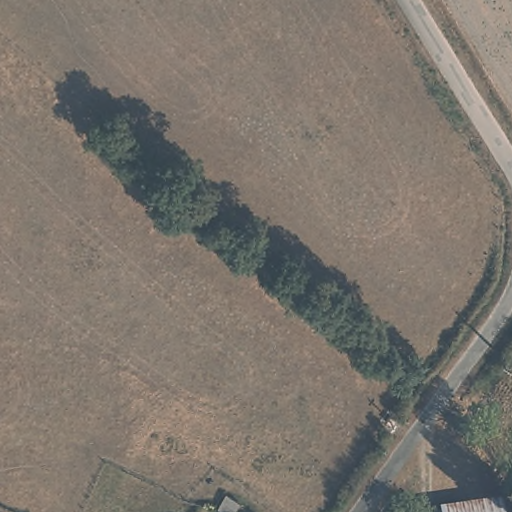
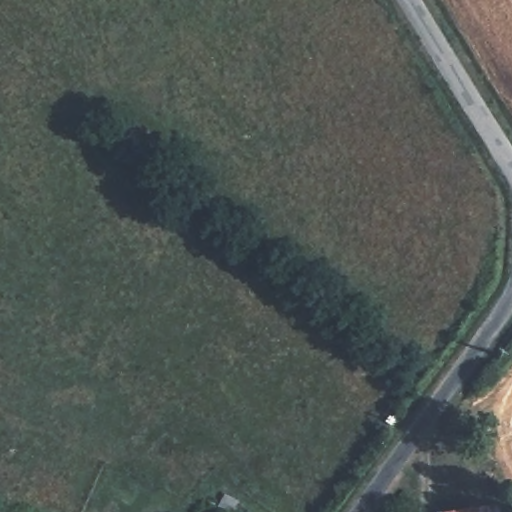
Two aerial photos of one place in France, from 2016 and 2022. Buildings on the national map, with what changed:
unchanged [(224,489),(237,498),(229,509),(216,501),(224,489)]
unchanged [(497,509),(497,512),(473,512),(497,509)]

